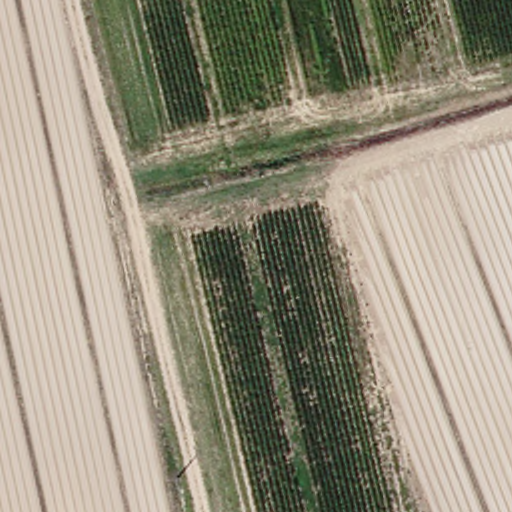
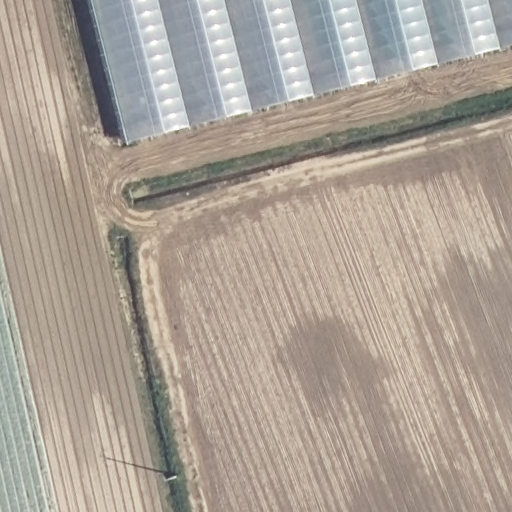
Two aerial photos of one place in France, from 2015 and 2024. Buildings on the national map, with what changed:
new [(137,136),(102,0),(512,0),(512,43),(137,136)]

